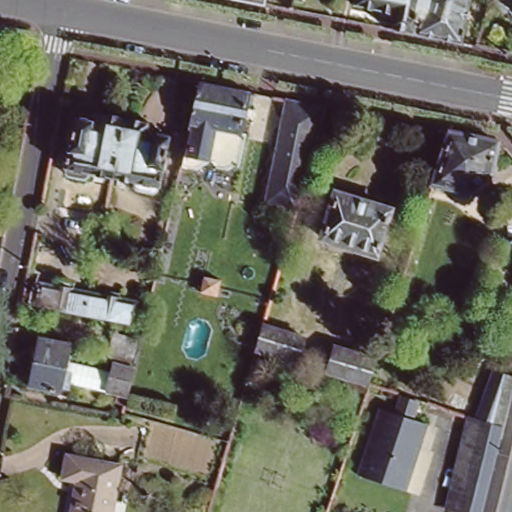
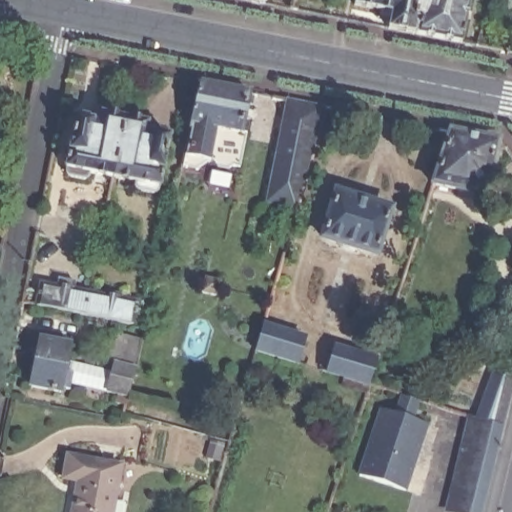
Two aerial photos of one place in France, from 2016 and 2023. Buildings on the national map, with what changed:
unchanged [(241,0),(256,0),(255,3),(241,0)]
unchanged [(352,5),(353,0),(423,0),(412,34),(385,28),(389,12),(352,5)]
unchanged [(467,0),(458,42),(412,34),(423,0),(467,0)]
unchanged [(512,4),(512,24),(510,25),(505,18),(500,21),(490,6),(493,0),(509,0),(512,4)]
unchanged [(247,104),(240,104),(235,134),(219,131),(216,139),(212,141),(205,141),(199,138),(199,134),(184,130),(195,83),(249,94),(247,104)]
unchanged [(262,204),(267,184),(282,100),(319,108),(295,189),(290,209),(262,204)]
unchanged [(89,175),(85,179),(69,176),(65,172),(67,169),(65,168),(75,118),(99,121),(100,113),(124,118),(112,177),(90,172),(89,175)]
unchanged [(124,118),(147,123),(145,131),(169,136),(158,187),(152,194),(135,189),(132,187),(134,181),(112,177),(124,118)]
unchanged [(490,137),(485,169),(462,185),(427,178),(443,126),(490,137)]
unchanged [(382,210),(369,254),(317,238),(330,195),(382,210)]
unchanged [(106,241),(105,248),(99,247),(100,239),(106,241)]
unchanged [(217,295),(201,292),(205,277),(220,280),(217,295)]
unchanged [(58,287),(60,279),(77,283),(75,290),(90,293),(85,316),(37,307),(42,284),(58,287)]
unchanged [(105,295),(107,290),(124,293),(122,299),(138,303),(134,325),(85,316),(90,293),(105,295)]
unchanged [(300,333),(292,359),(250,346),(257,320),(300,333)]
unchanged [(117,394),(107,391),(70,384),(69,389),(62,388),(60,393),(31,387),(40,338),(70,343),(66,364),(112,373),(114,364),(110,363),(117,335),(142,341),(140,354),(137,366),(135,373),(125,404),(115,402),(117,394)]
unchanged [(370,351),(362,376),(322,364),(330,338),(370,351)]
unchanged [(482,402),(487,385),(491,368),(512,373),(512,382),(510,390),(506,407),(502,424),(480,512),(455,512),(450,511),(469,415),(478,419),(482,402)]
unchanged [(415,402),(409,420),(424,425),(402,492),(357,476),(378,410),(392,415),(399,397),(415,402)]
unchanged [(65,505),(71,476),(57,473),(61,451),(102,458),(117,461),(106,512),(64,512),(65,505)]

